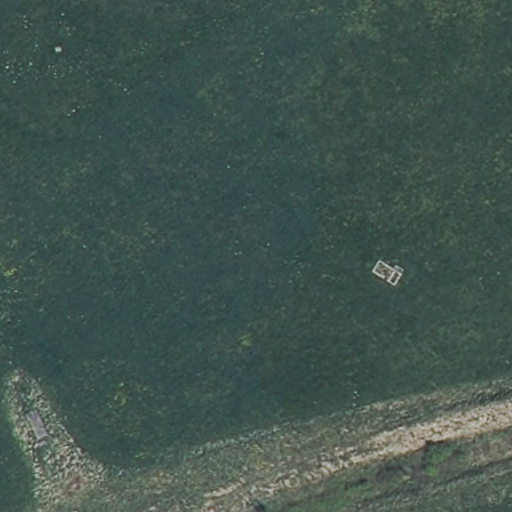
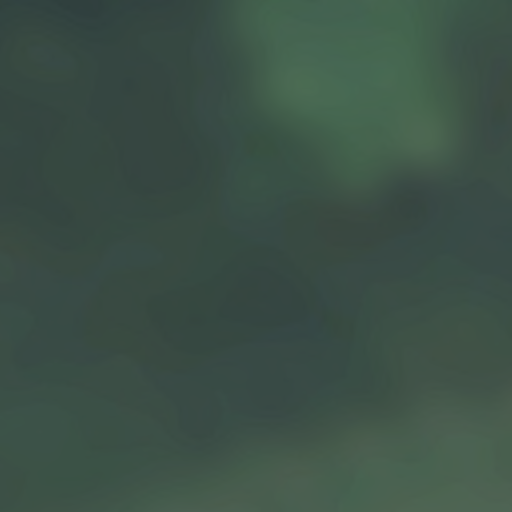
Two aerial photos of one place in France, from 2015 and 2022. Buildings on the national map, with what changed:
[]

